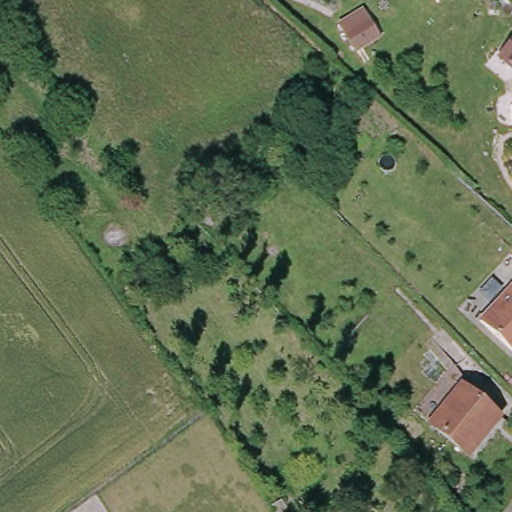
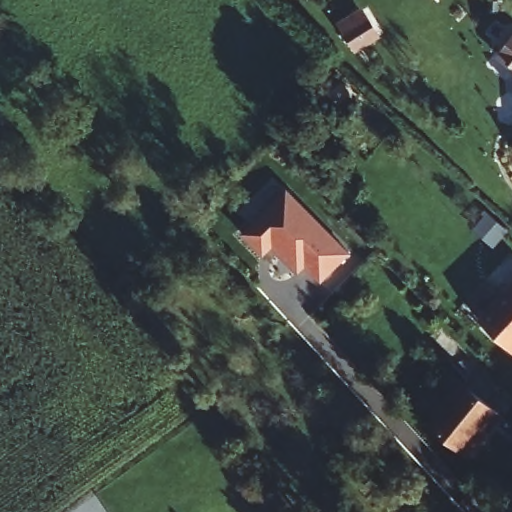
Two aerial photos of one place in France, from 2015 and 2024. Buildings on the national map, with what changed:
new [(382,39),(355,55),(337,22),(363,7),(382,39)]
new [(512,40),(512,70),(497,58),(512,40)]
new [(349,254),(320,284),(304,268),(297,275),(278,255),(280,253),(273,247),(262,258),(242,238),(287,192),(349,254)]
unchanged [(512,288),(512,353),(480,323),(512,288)]
unchanged [(502,414),(466,457),(429,426),(465,383),(502,414)]
unchanged [(275,512),(272,506),(281,500),(288,512),(275,512)]

